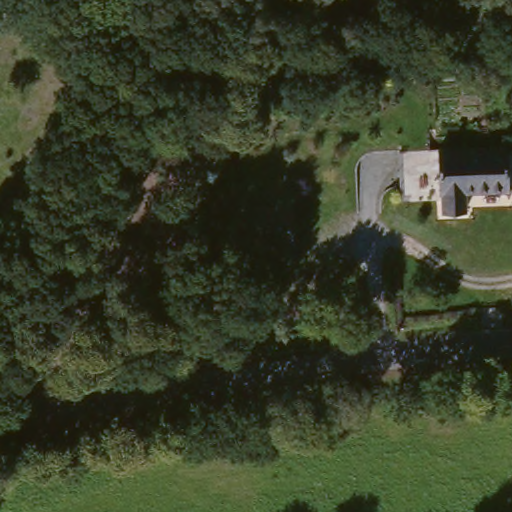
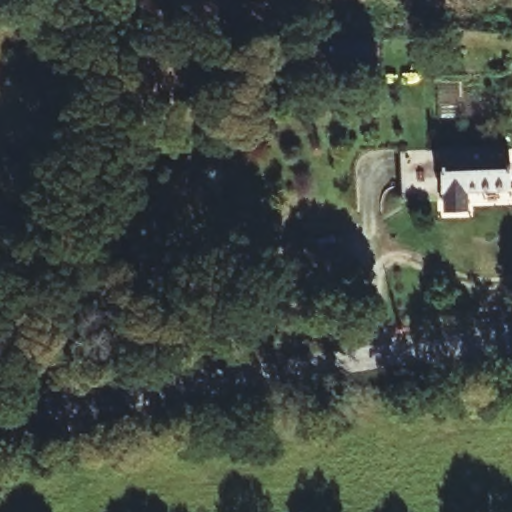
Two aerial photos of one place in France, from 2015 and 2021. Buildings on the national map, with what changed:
unchanged [(510,152),(510,154),(511,194),(465,196),(466,216),(445,217),(444,197),(441,197),(442,155),(510,152)]

